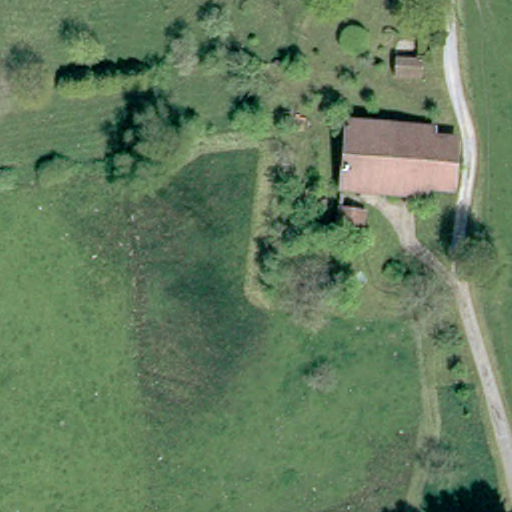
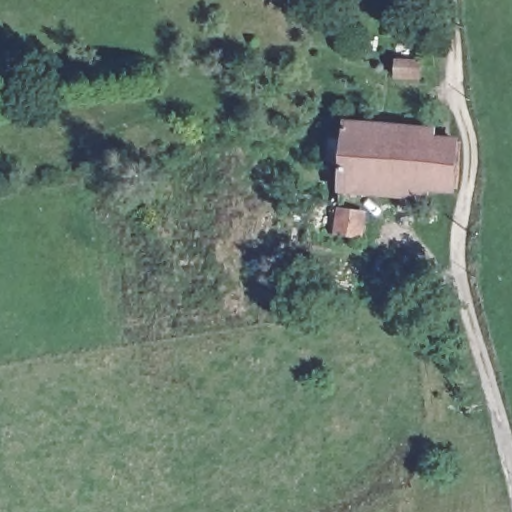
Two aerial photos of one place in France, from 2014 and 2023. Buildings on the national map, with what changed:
unchanged [(436,55),(434,78),(413,74),(415,53),(436,55)]
unchanged [(432,193),(344,186),(351,118),(431,125),(438,126),(437,135),(461,137),(457,185),(433,184),(432,193)]
unchanged [(346,201),(367,202),(366,231),(329,229),(333,191),(346,192),(346,201)]

